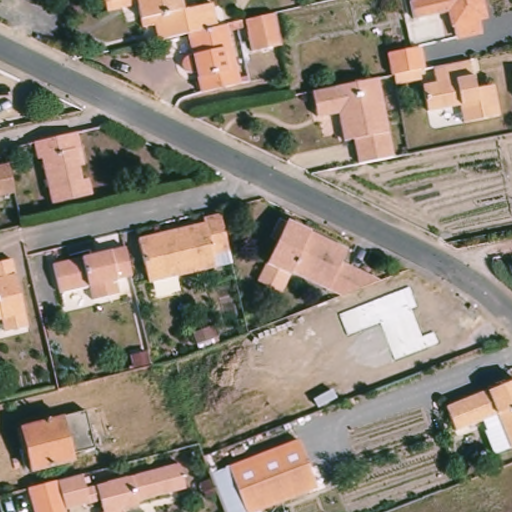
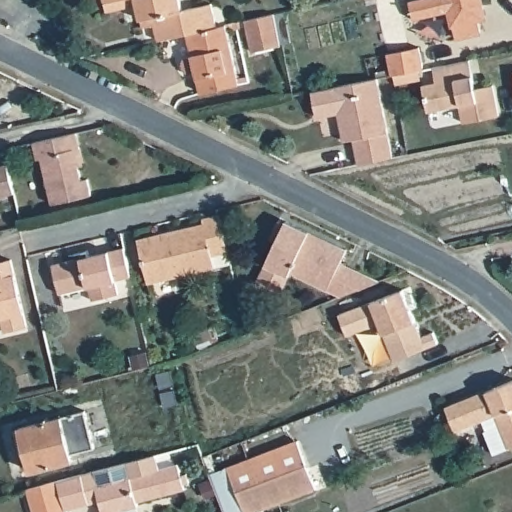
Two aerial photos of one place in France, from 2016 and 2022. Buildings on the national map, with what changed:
unchanged [(144,9),(112,15),(109,0),(186,0),(188,12),(216,7),(221,30),(164,43),(161,28),(149,30),(144,9)]
unchanged [(487,0),(491,19),(483,21),(486,35),(462,40),(457,15),(422,21),(418,3),(431,0),(487,0)]
unchanged [(271,17),(277,51),(247,56),(242,24),(271,17)]
unchanged [(243,85),(219,91),(206,94),(201,74),(198,74),(196,73),(194,72),(193,71),(192,69),(191,67),(191,64),(191,62),(194,60),(196,58),(199,57),(195,38),(233,31),(244,85),(243,85)]
unchanged [(390,59),(423,51),(424,55),(427,75),(421,76),(423,85),(398,89),(395,80),(390,59)]
unchanged [(472,66),(477,94),(495,90),(500,120),(465,126),(462,110),(429,115),(425,91),(437,87),(435,73),(472,66)]
unchanged [(396,161),(364,166),(360,144),(351,146),(345,117),(323,121),(318,95),(384,83),(400,160),(396,161)]
unchanged [(79,135),(82,149),(86,166),(80,167),(83,181),(90,180),(93,195),(53,204),(43,158),(38,160),(34,146),(42,144),(79,135)]
unchanged [(12,161),(18,192),(0,196),(0,164),(12,161)]
unchanged [(207,256),(210,267),(142,283),(132,240),(198,224),(197,219),(214,215),(221,245),(222,252),(207,256)]
unchanged [(260,285),(270,265),(269,263),(280,242),(273,239),(282,222),(288,225),(291,222),(350,250),(344,263),(382,282),(381,282),(343,297),(295,272),(292,276),(290,275),(280,295),(260,285)]
unchanged [(118,249),(125,278),(109,282),(112,296),(86,302),(83,288),(53,295),(46,266),(103,252),(118,249)]
unchanged [(21,328),(0,333),(0,262),(5,261),(21,328)]
new [(400,285),(420,333),(431,328),(436,340),(393,356),(377,318),(344,332),(336,311),(400,285)]
unchanged [(459,434),(450,411),(512,385),(512,451),(500,456),(487,423),(459,434)]
unchanged [(75,462),(31,473),(27,458),(22,460),(19,452),(24,451),(20,432),(64,418),(75,462)]
unchanged [(319,490),(262,512),(248,512),(232,470),(302,443),(319,490)]
unchanged [(94,502),(58,512),(52,512),(45,485),(88,473),(92,487),(175,466),(181,490),(132,503),(133,507),(113,512),(96,512),(94,502)]

